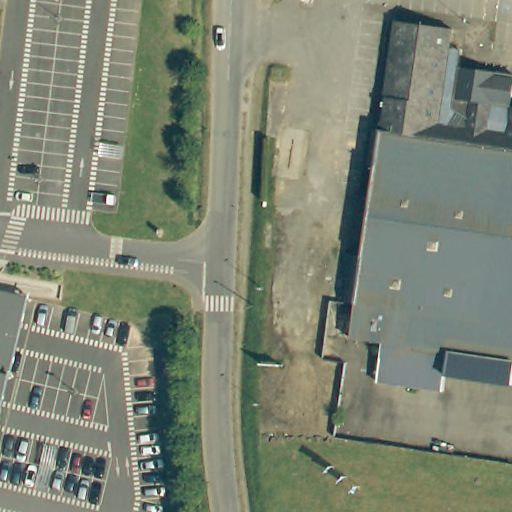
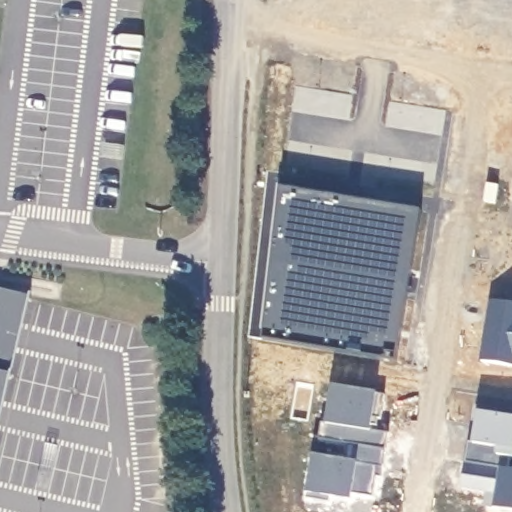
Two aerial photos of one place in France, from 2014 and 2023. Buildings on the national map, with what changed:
demolished [(381,344),(353,340),(355,307),(337,303),(343,250),(364,255),(376,169),(365,167),(368,131),(382,132),(390,20),(450,29),(449,49),(459,50),(458,70),(512,76),(512,361),(381,344)]
demolished [(301,168),(271,165),(272,135),(305,139),(301,168)]
unchanged [(0,420),(0,290),(30,297),(0,420)]
demolished [(512,361),(512,382),(447,370),(442,394),(374,386),(381,344),(512,361)]

